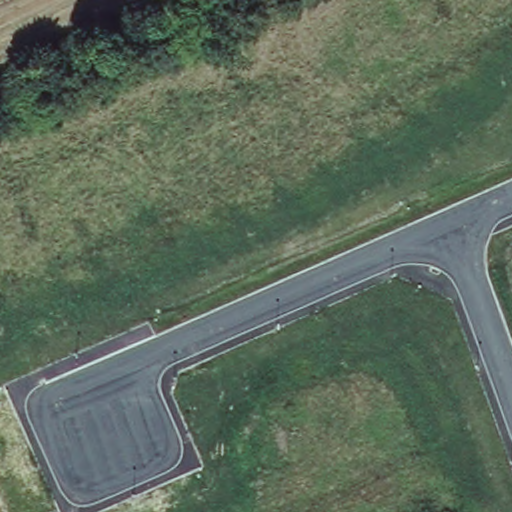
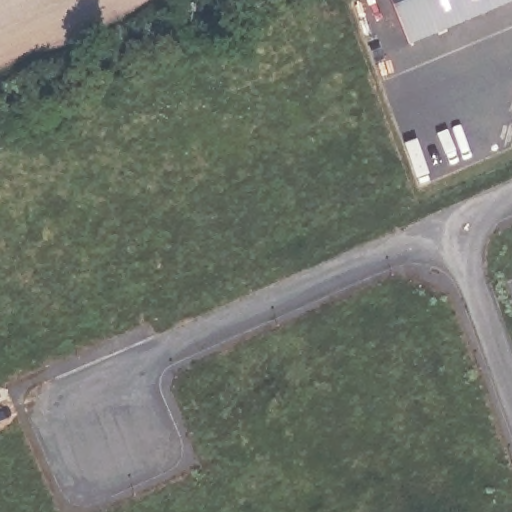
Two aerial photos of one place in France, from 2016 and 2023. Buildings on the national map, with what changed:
new [(414,44),(397,0),(512,0),(512,3),(414,44)]

